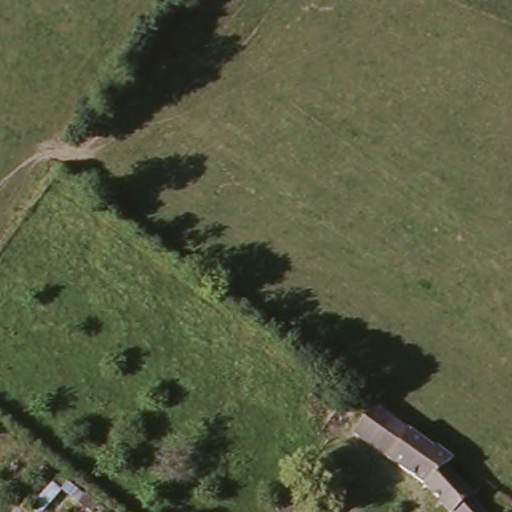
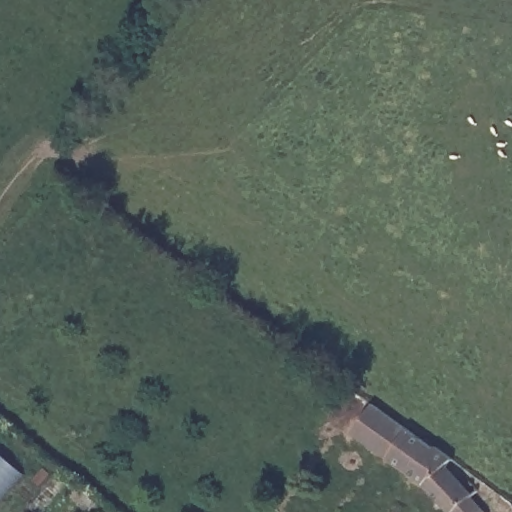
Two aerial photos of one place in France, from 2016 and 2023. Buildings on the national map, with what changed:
unchanged [(428,442),(409,473),(354,430),(376,402),(428,442)]
unchanged [(429,444),(434,448),(438,443),(456,457),(445,469),(487,512),(452,512),(430,485),(424,485),(409,473),(428,442),(429,444)]
new [(0,505),(0,455),(25,477),(0,505)]

